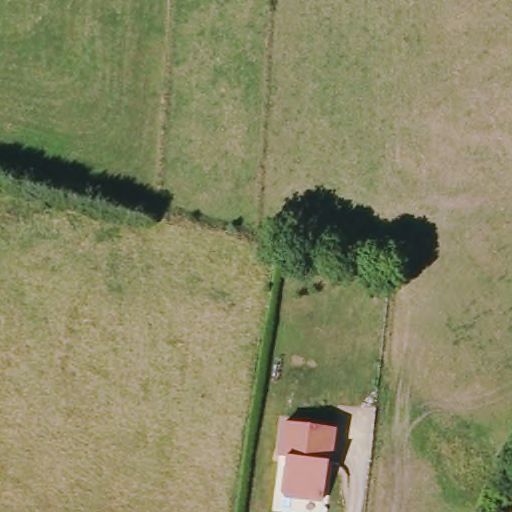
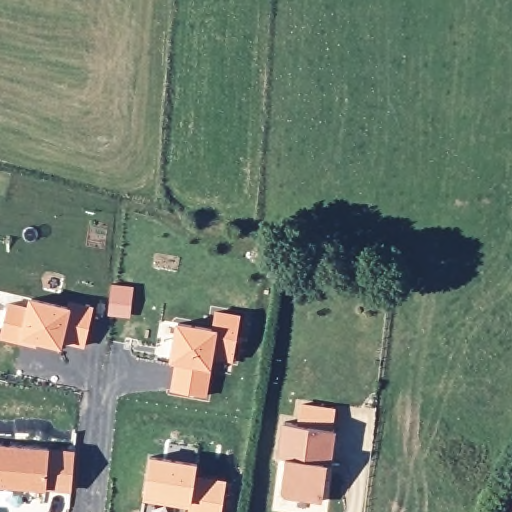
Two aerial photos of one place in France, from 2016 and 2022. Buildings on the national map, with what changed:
new [(85,348),(62,345),(62,347),(35,342),(35,347),(1,339),(8,302),(28,307),(30,297),(68,306),(69,302),(92,306),(85,348)]
new [(233,361),(213,358),(211,369),(206,395),(171,390),(175,363),(170,362),(176,322),(213,327),(215,310),(240,314),(233,361)]
unchanged [(334,462),(328,462),(325,497),(285,493),(288,456),(282,456),(287,423),(336,429),(334,462)]
new [(46,487),(0,484),(0,445),(49,448),(46,487)]
new [(189,512),(191,504),(187,503),(186,508),(144,502),(145,497),(151,456),(197,463),(195,474),(226,481),(222,512),(189,512)]
unchanged [(512,512),(511,512),(512,509),(512,512)]

